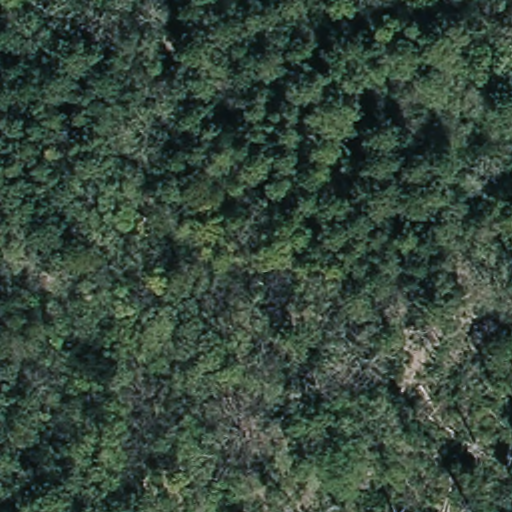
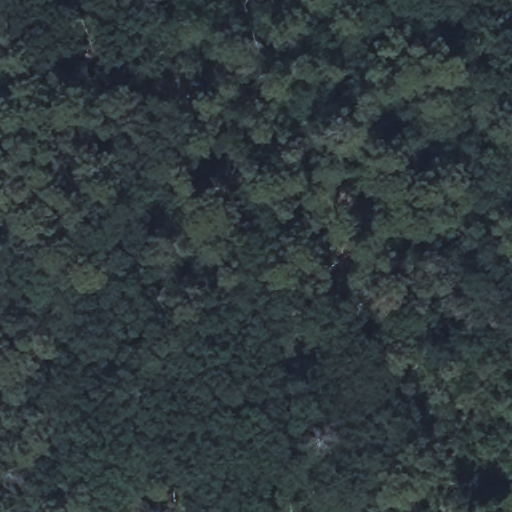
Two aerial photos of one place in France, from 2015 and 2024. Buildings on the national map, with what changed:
unchanged [(164,99),(183,102),(180,122),(161,119),(164,99)]

